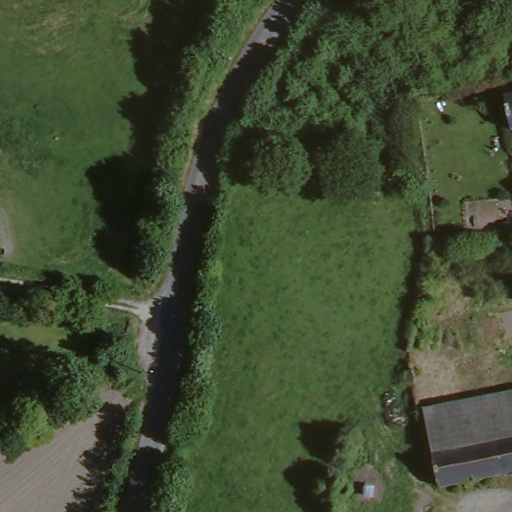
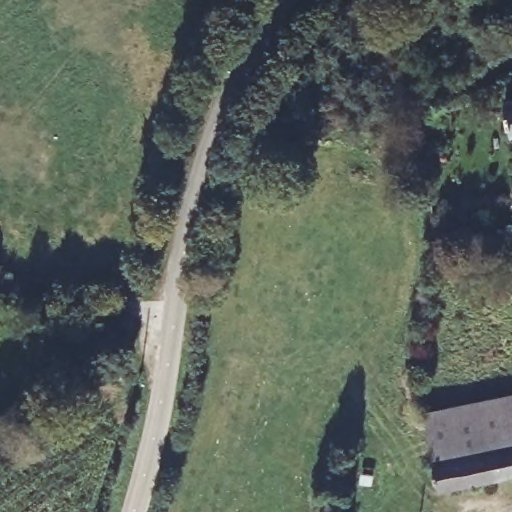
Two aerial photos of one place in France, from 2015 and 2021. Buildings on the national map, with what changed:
unchanged [(512,75),(512,93),(510,93),(505,78),(512,75)]
unchanged [(508,103),(510,102),(512,102),(512,135),(508,103)]
unchanged [(427,423),(428,419),(426,411),(512,389),(512,440),(434,458),(427,423)]
unchanged [(434,458),(512,440),(512,475),(443,491),(434,458)]

